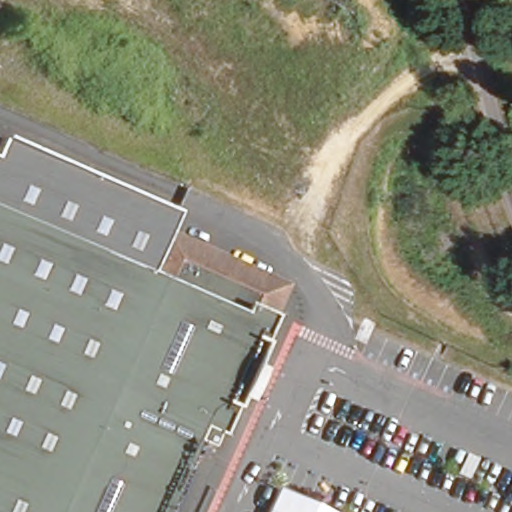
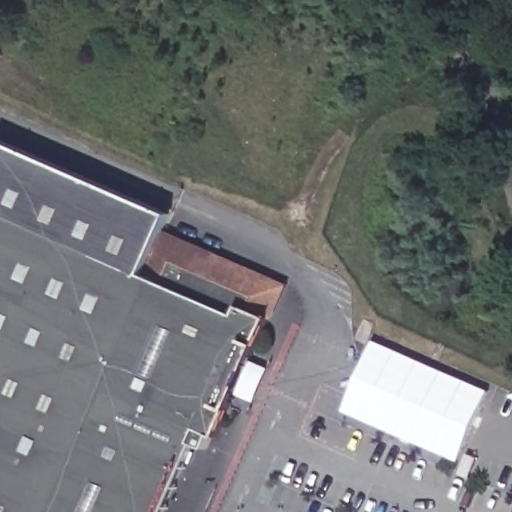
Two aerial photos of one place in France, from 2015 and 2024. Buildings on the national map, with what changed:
unchanged [(211,435),(190,426),(154,512),(0,512),(0,139),(165,211),(156,230),(268,278),(278,282),(266,309),(256,333),(221,412),(211,435)]
new [(342,411),(373,340),(487,390),(457,461),(342,411)]

